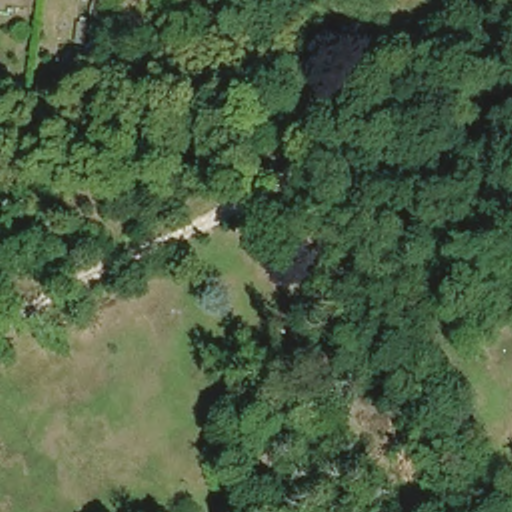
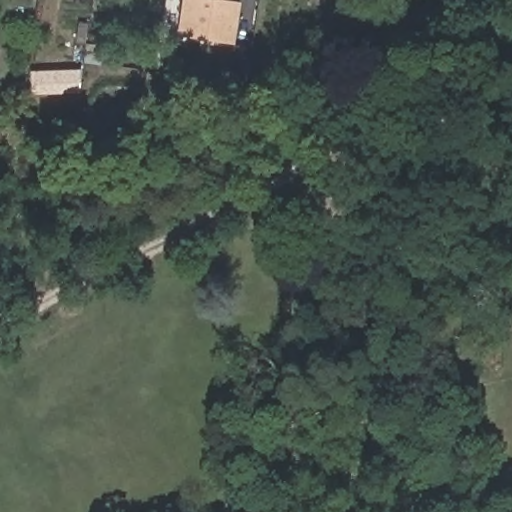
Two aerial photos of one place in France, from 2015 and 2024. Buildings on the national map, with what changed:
new [(240,1),(234,44),(176,35),(182,0),(234,0),(240,1)]
unchanged [(37,84),(64,82),(65,95),(37,96),(37,84)]

